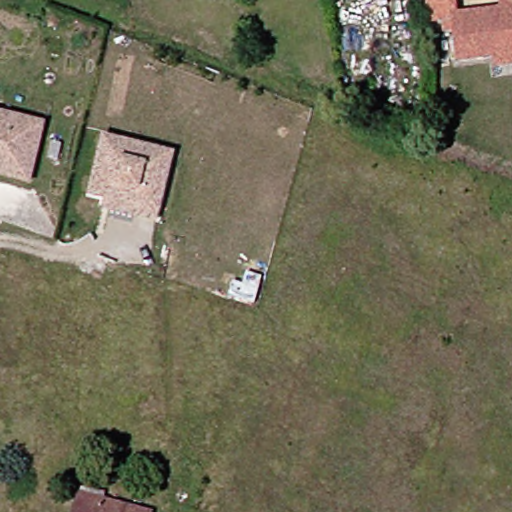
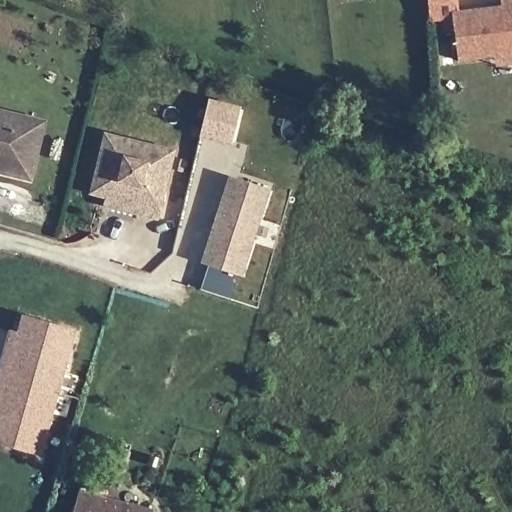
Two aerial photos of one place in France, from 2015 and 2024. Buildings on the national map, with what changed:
unchanged [(467,25),(459,26),(458,14),(442,16),(441,0),(471,0),(472,6),(512,1),(512,61),(508,61),(507,51),(471,55),(467,25)]
new [(209,100),(241,108),(233,139),(201,131),(209,100)]
unchanged [(46,120),(43,134),(31,177),(0,169),(0,107),(46,120)]
unchanged [(430,129),(427,136),(413,131),(415,124),(430,129)]
unchanged [(156,221),(134,216),(135,211),(111,205),(112,201),(90,196),(104,138),(129,144),(148,149),(172,155),(156,221)]
new [(218,215),(231,176),(271,190),(243,276),(203,263),(215,227),(218,215)]
new [(22,315),(76,330),(39,456),(0,445),(0,392),(22,315)]
unchanged [(108,489),(106,496),(155,509),(155,512),(77,512),(84,483),(108,489)]

